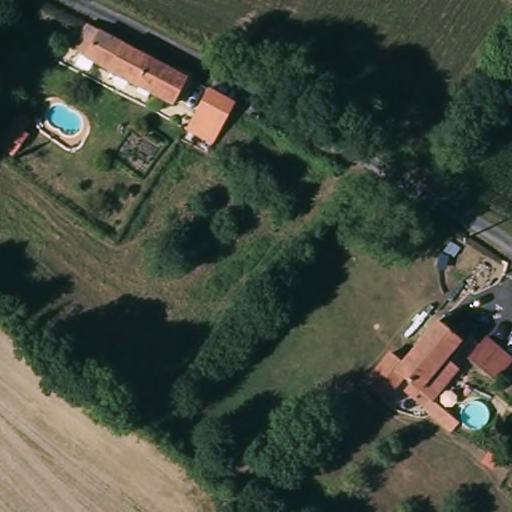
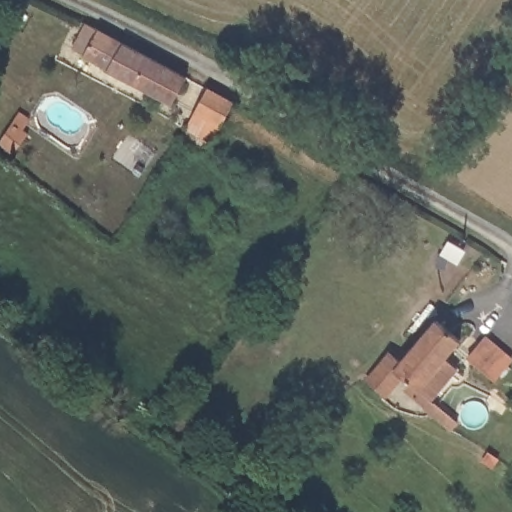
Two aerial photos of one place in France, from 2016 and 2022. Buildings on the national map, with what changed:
unchanged [(182,76),(169,102),(105,68),(105,67),(69,47),(82,23),(182,76)]
unchanged [(192,109),(194,110),(205,89),(208,90),(209,90),(231,102),(219,124),(214,132),(212,135),(209,142),(182,127),(192,109)]
unchanged [(17,116),(30,122),(27,127),(22,134),(29,137),(21,152),(17,158),(16,158),(7,154),(0,149),(0,140),(2,142),(17,116)]
unchanged [(427,397),(417,387),(415,388),(399,376),(384,396),(366,379),(387,351),(398,361),(432,320),(456,340),(441,358),(452,368),(427,397)]
unchanged [(487,341),(512,361),(512,365),(497,383),(470,361),(487,341)]

